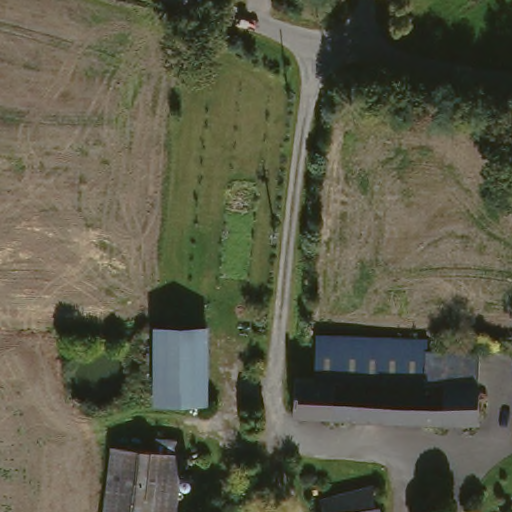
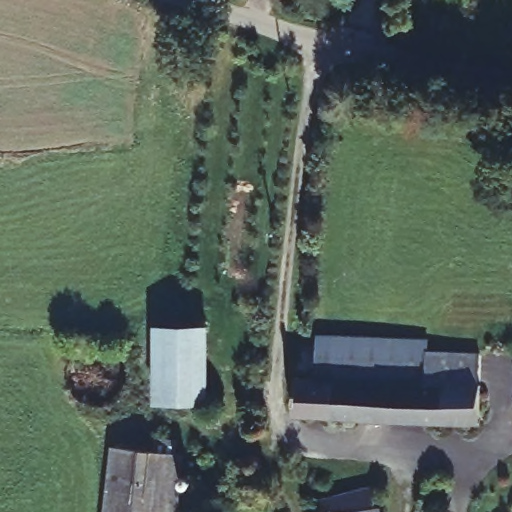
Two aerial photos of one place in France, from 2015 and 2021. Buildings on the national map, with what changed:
unchanged [(202,326),(199,402),(148,399),(153,323),(202,326)]
unchanged [(428,335),(429,344),(480,346),(481,379),(380,375),(316,372),(318,333),(428,335)]
unchanged [(380,375),(481,379),(483,419),(293,412),(298,372),(316,372),(380,375)]
unchanged [(156,441),(180,443),(170,512),(104,512),(115,448),(155,453),(156,441)]
unchanged [(375,487),(375,512),(323,512),(323,495),(375,487)]

